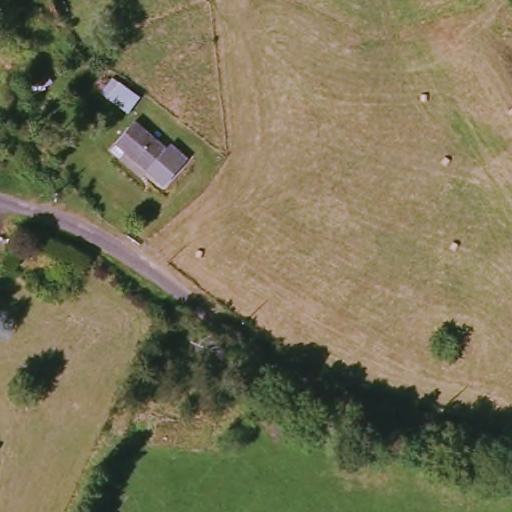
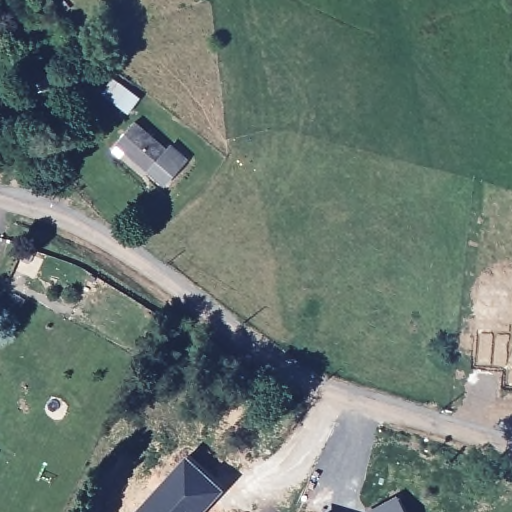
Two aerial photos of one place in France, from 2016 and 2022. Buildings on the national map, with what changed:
unchanged [(132,121),(110,108),(122,91),(142,104),(132,121)]
unchanged [(167,155),(172,150),(187,161),(165,191),(125,156),(120,163),(114,158),(119,151),(117,150),(134,129),(167,155)]
new [(189,461),(222,491),(202,512),(170,483),(189,461)]
new [(170,483),(202,512),(142,512),(170,483)]
new [(402,500),(408,512),(380,512),(402,500)]

